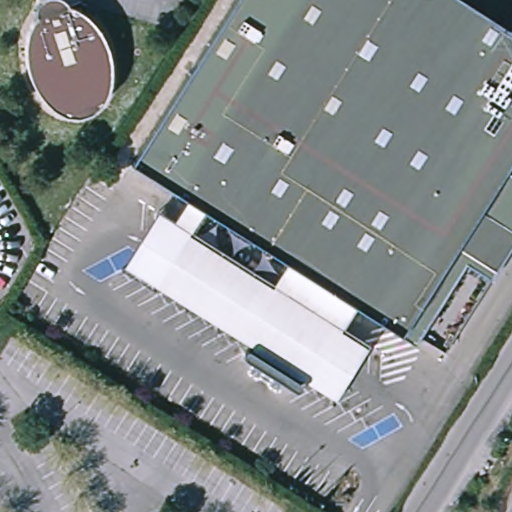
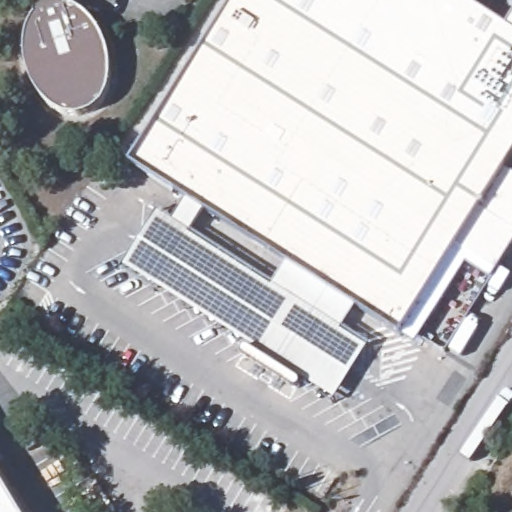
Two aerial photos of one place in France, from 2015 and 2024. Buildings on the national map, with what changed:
unchanged [(30,7),(35,0),(61,0),(64,5),(74,10),(88,21),(99,36),(106,55),(107,73),(104,88),(101,98),(92,108),(81,115),(69,117),(56,114),(43,106),(34,95),(26,81),(20,59),(19,43),(22,29),(30,15),(30,7)]
unchanged [(400,339),(353,309),(284,265),(202,214),(190,234),(271,286),(340,330),(368,347),(332,405),(114,267),(150,209),(169,222),(182,202),(125,165),(229,0),(458,0),(505,30),(512,20),(512,160),(505,172),(512,177),(512,247),(490,282),(465,267),(430,323),(414,348),(400,339)]
unchanged [(340,330),(271,286),(284,265),(353,309),(340,330)]
new [(0,512),(0,480),(19,512),(0,512)]

